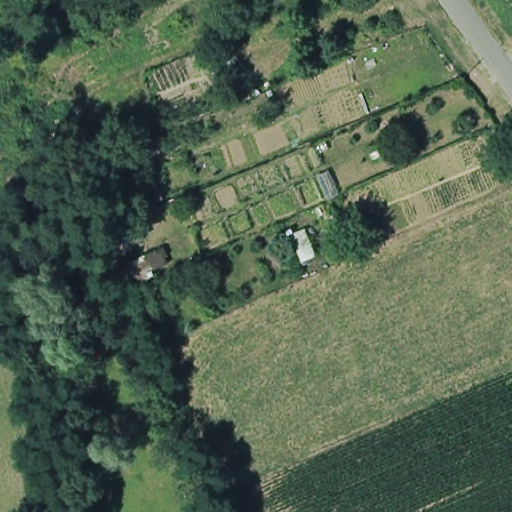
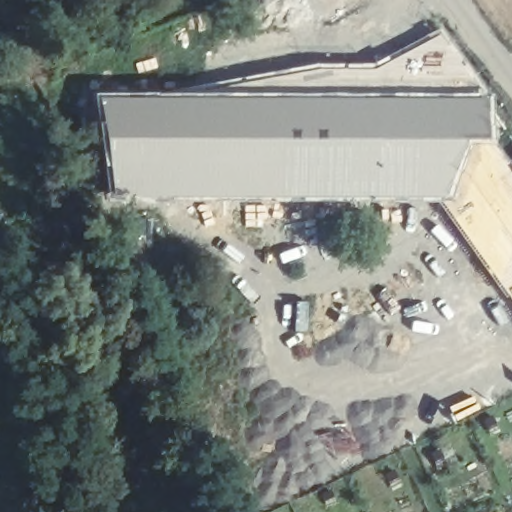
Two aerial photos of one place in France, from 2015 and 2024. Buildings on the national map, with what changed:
new [(485,99),(487,145),(464,142),(447,204),(107,200),(93,96),(485,99)]
new [(464,142),(487,145),(502,161),(512,155),(512,293),(447,204),(464,142)]
unchanged [(298,261),(287,231),(303,224),(315,252),(298,261)]

